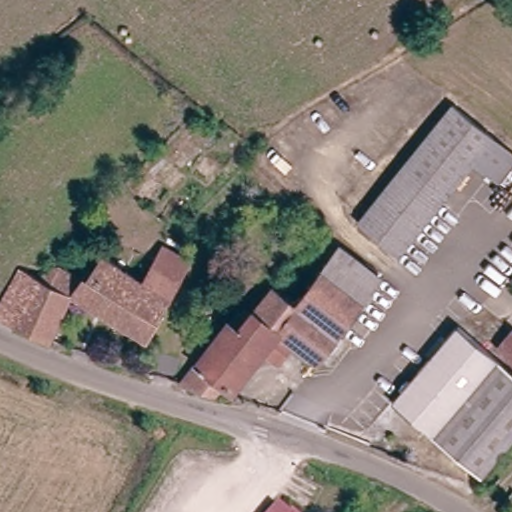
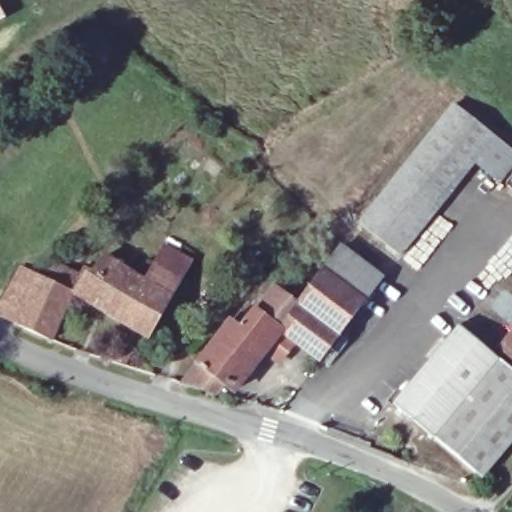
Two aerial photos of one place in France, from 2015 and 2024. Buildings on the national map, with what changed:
new [(6,18),(0,21),(0,6),(6,18)]
unchanged [(398,253),(392,248),(359,220),(386,189),(460,105),(512,150),(512,167),(500,181),(478,162),(420,228),(398,253)]
unchanged [(51,340),(0,312),(0,303),(20,267),(45,279),(54,264),(81,280),(102,254),(141,277),(150,264),(165,242),(194,256),(180,283),(145,338),(76,300),(51,340)]
unchanged [(272,361),(257,353),(234,381),(221,377),(210,389),(178,378),(250,296),(259,301),(277,277),(302,294),(341,247),(383,278),(319,355),(291,336),(272,361)]
unchanged [(492,346),(512,362),(512,451),(490,477),(423,421),(417,416),(403,405),(468,326),(488,342),(492,346)]
unchanged [(512,341),(512,351),(507,348),(512,341)]
unchanged [(126,367),(112,362),(121,346),(132,351),(126,367)]
unchanged [(290,512),(273,512),(280,503),(290,512)]

